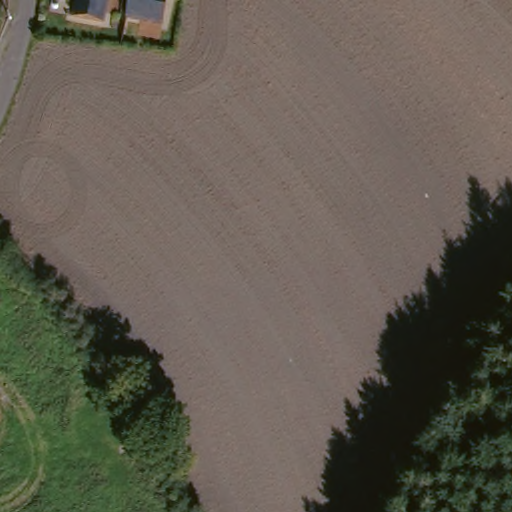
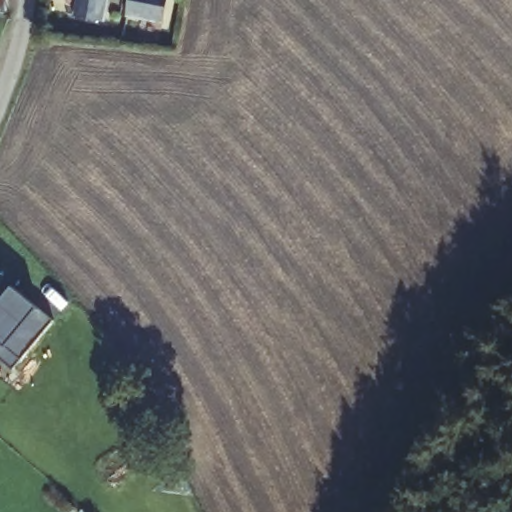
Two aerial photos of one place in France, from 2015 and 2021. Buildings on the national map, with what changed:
unchanged [(72,14),(74,0),(107,0),(102,20),(72,14)]
unchanged [(126,15),(128,0),(166,0),(162,21),(126,15)]
new [(21,360),(0,344),(0,305),(14,288),(54,322),(21,360)]

